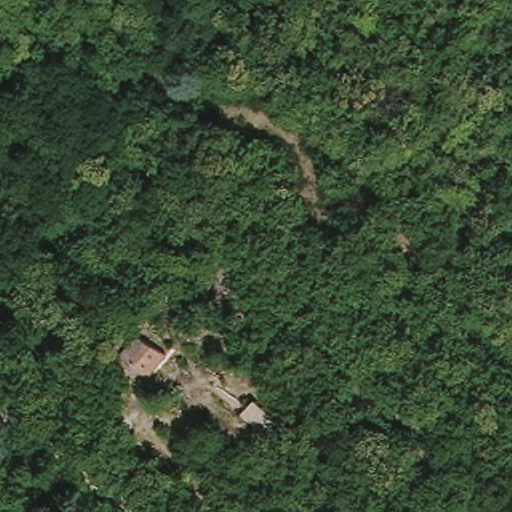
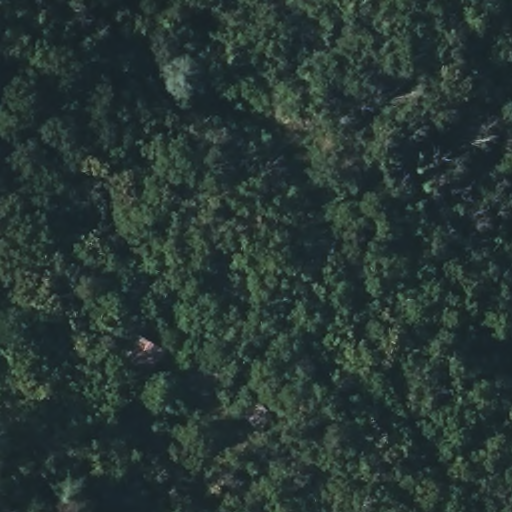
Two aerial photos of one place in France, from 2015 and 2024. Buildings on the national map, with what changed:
unchanged [(165,357),(147,380),(116,360),(136,335),(165,357)]

